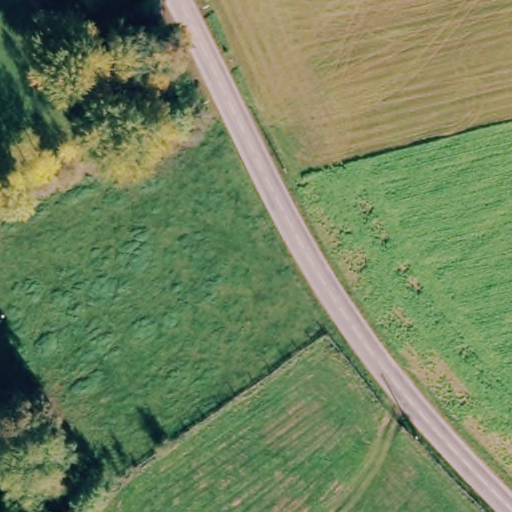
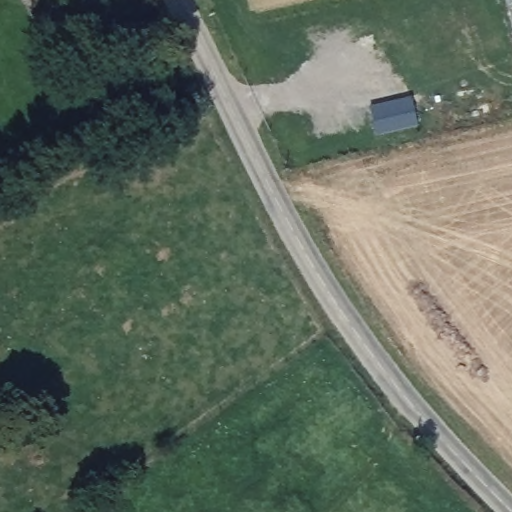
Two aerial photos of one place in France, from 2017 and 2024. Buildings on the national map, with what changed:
new [(512,36),(505,0),(512,0),(512,36)]
new [(377,136),(370,107),(412,97),(419,127),(377,136)]

